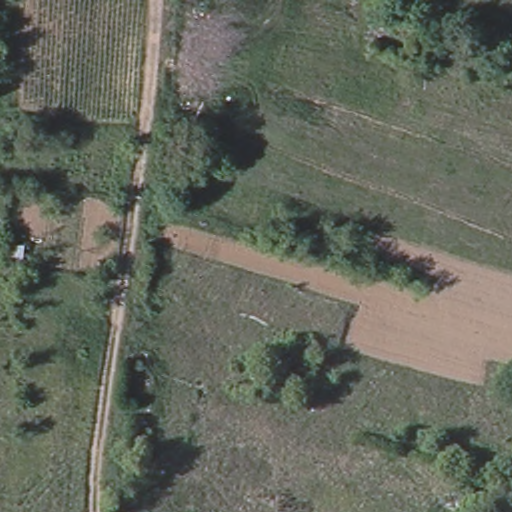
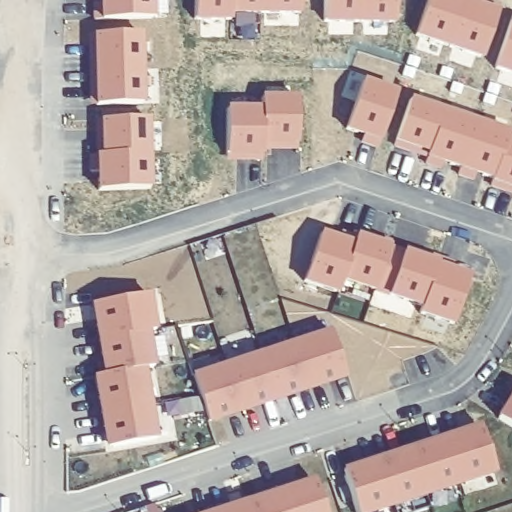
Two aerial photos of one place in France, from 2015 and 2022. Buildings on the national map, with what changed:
new [(105,12),(105,0),(156,0),(156,9),(105,12)]
new [(234,10),(234,16),(199,16),(199,0),(302,0),(302,9),(234,10)]
new [(329,19),(329,0),(396,0),(397,16),(329,19)]
new [(485,55),(420,30),(432,0),(477,0),(501,8),(485,55)]
new [(500,64),(512,27),(512,67),(500,64)]
new [(144,29),(146,96),(100,98),(97,31),(144,29)]
new [(400,86),(379,146),(362,141),(366,130),(351,125),(367,75),(400,86)]
new [(265,105),(266,94),(300,96),(297,145),(267,145),(266,157),(229,159),(232,104),(265,105)]
new [(512,128),(512,135),(512,192),(491,186),(494,175),(477,170),(475,180),(460,175),(464,165),(429,154),(425,159),(395,147),(415,95),(512,128)]
new [(152,116),(153,181),(100,185),(100,150),(107,150),(105,117),(152,116)]
new [(357,240),(362,229),(474,271),(459,321),(424,310),(425,303),(345,275),(338,289),(307,277),(326,230),(357,240)]
new [(110,425),(102,425),(99,396),(104,396),(101,376),(109,375),(107,355),(100,356),(96,325),(102,325),(99,303),(145,296),(151,331),(145,332),(150,367),(140,370),(152,439),(112,446),(110,425)]
new [(207,420),(194,376),(329,332),(342,376),(207,420)]
new [(497,422),(497,421),(512,397),(512,431),(497,422)]
new [(479,426),(492,472),(368,512),(355,512),(343,472),(479,426)]
new [(245,503),(314,480),(322,512),(219,512),(245,503)]

